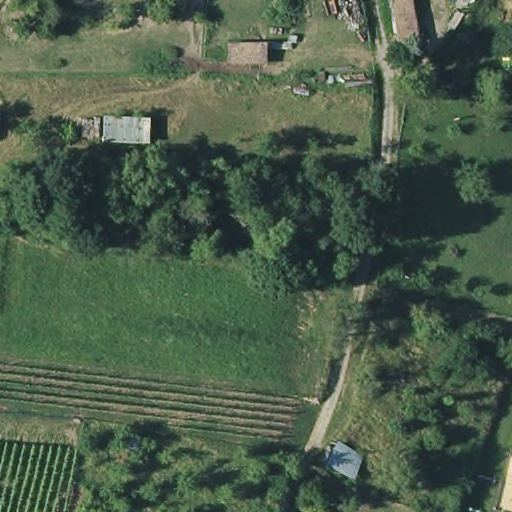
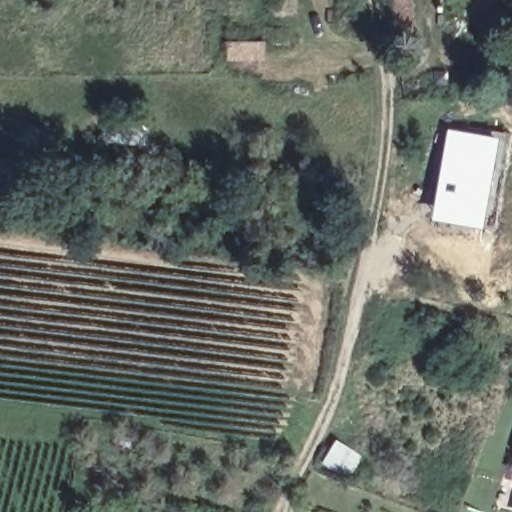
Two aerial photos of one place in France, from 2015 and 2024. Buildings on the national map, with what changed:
unchanged [(268,68),(227,65),(228,41),(267,41),(268,68)]
unchanged [(105,145),(103,118),(148,115),(148,143),(105,145)]
new [(447,127),(502,135),(485,228),(432,218),(447,127)]
unchanged [(320,442),(355,456),(347,482),(314,470),(320,442)]

